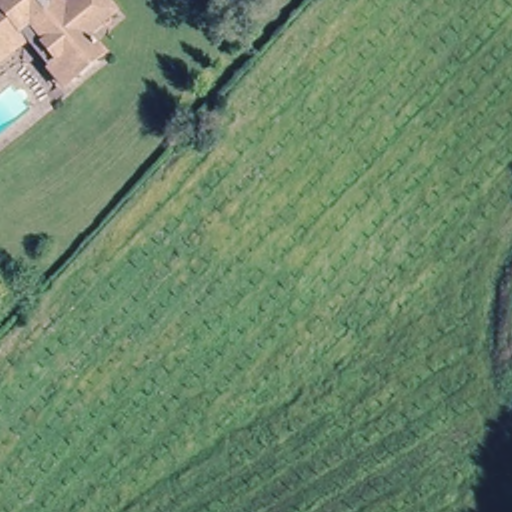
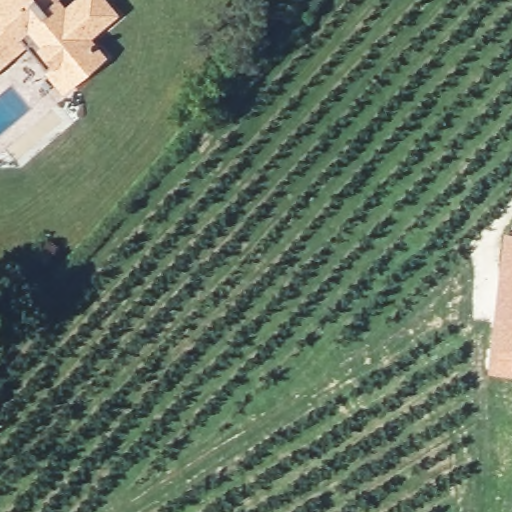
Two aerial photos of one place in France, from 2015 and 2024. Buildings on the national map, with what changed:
unchanged [(66,0),(107,0),(115,13),(87,36),(105,55),(52,91),(20,45),(0,60),(0,0),(62,0),(63,1),(66,0)]
new [(512,228),(512,368),(491,366),(504,227),(512,228)]

